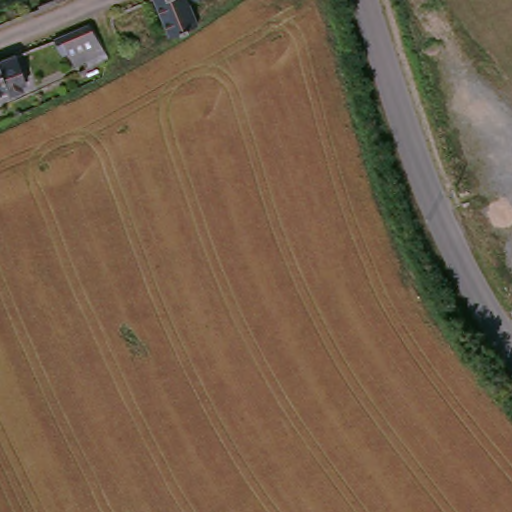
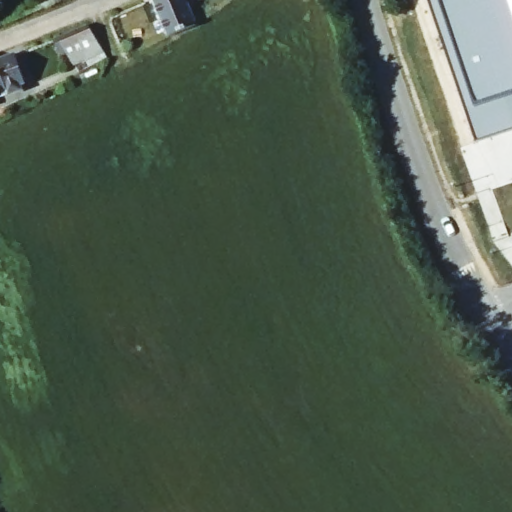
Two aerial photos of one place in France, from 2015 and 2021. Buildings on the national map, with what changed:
unchanged [(48,14),(43,0),(78,0),(74,2),(48,14)]
unchanged [(199,0),(182,7),(187,21),(189,27),(164,37),(163,34),(151,2),(154,0),(199,0)]
new [(477,140),(430,0),(512,0),(512,128),(477,140)]
unchanged [(85,34),(103,68),(77,82),(57,45),(85,34)]
unchanged [(24,82),(0,93),(0,62),(14,57),(24,82)]

